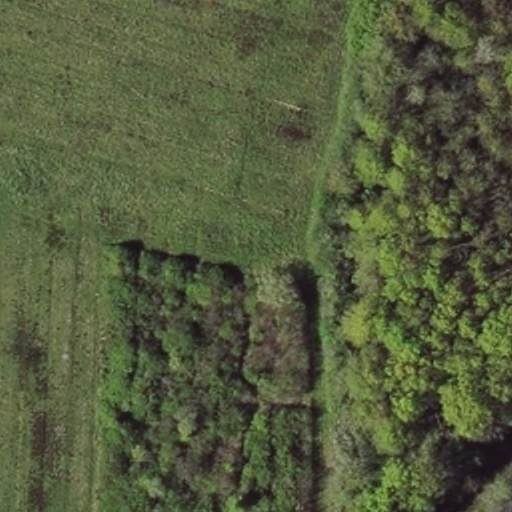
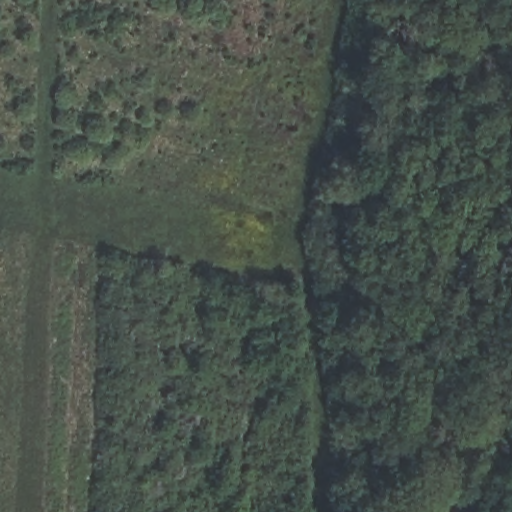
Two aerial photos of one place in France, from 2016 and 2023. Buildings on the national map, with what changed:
[]

